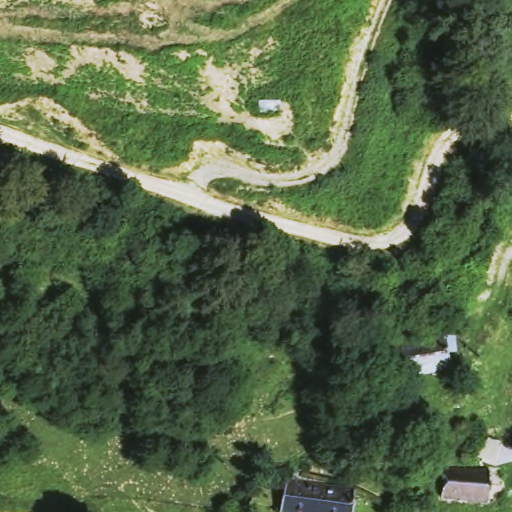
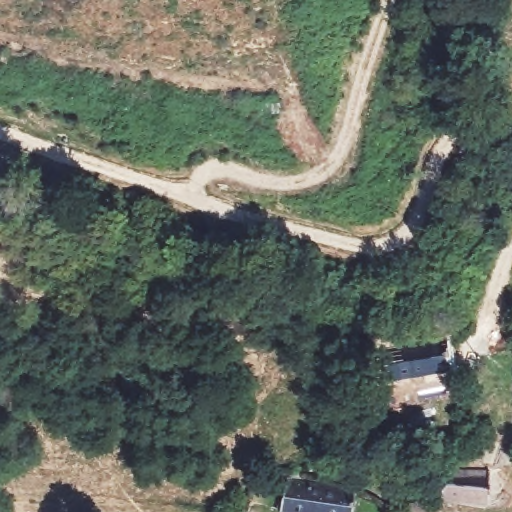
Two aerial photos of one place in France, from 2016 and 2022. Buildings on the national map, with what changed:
unchanged [(371,350),(439,337),(449,371),(380,385),(371,350)]
unchanged [(443,464),(490,471),(486,506),(437,498),(443,464)]
unchanged [(354,489),(351,512),(277,512),(282,478),(354,489)]

